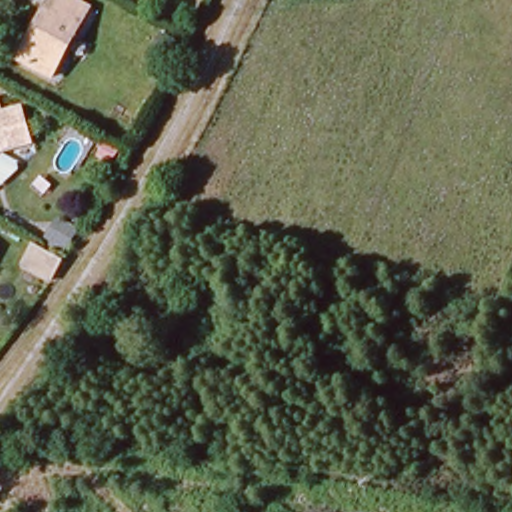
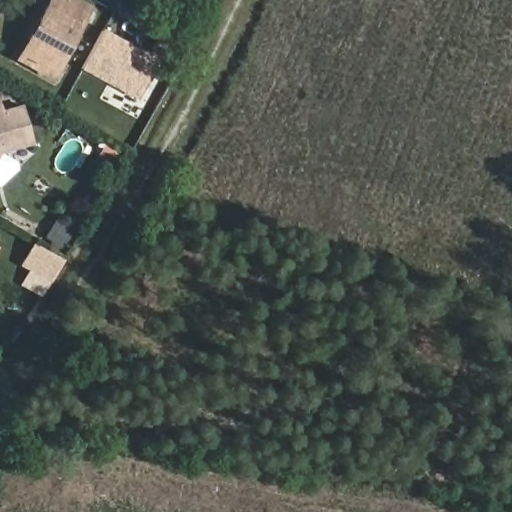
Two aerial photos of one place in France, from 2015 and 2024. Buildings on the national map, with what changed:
unchanged [(50,75),(18,59),(46,6),(52,9),(57,0),(75,0),(88,7),(50,75)]
new [(152,57),(142,77),(149,81),(138,101),(82,70),(101,31),(152,57)]
unchanged [(21,105),(31,141),(0,151),(0,107),(1,111),(21,105)]
unchanged [(11,174),(0,185),(0,154),(12,167),(11,174)]
new [(30,246),(59,262),(46,280),(20,265),(30,246)]

